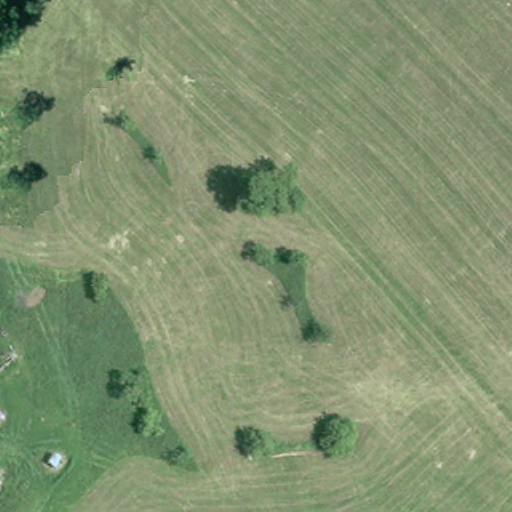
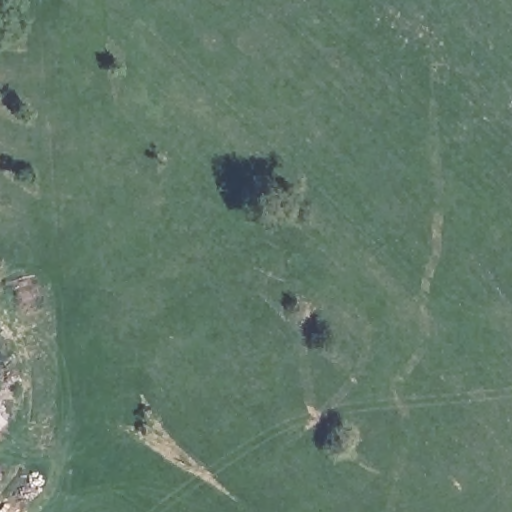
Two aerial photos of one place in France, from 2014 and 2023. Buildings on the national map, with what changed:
unchanged [(7,418),(0,426),(0,411),(7,418)]

